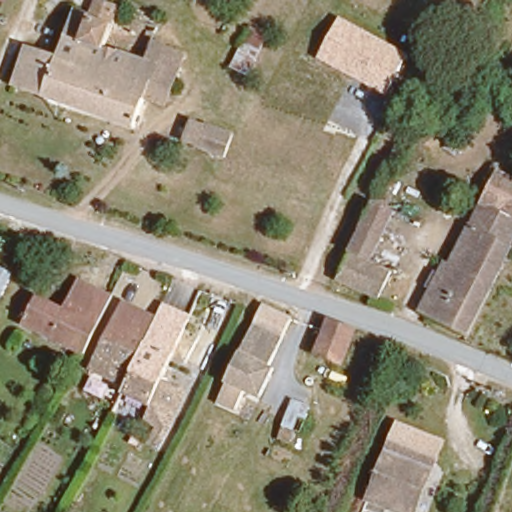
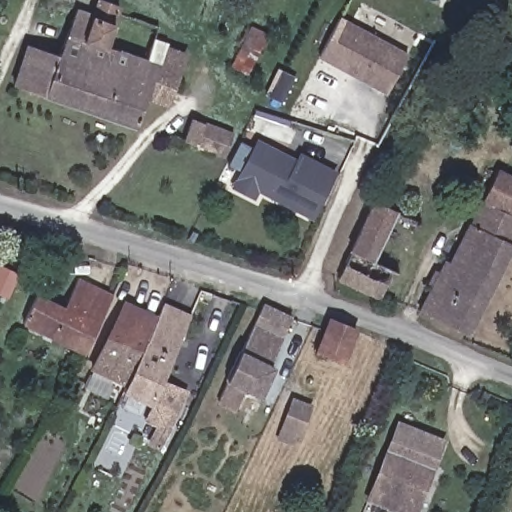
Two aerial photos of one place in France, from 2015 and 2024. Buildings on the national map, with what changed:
unchanged [(79,30),(68,26),(76,2),(91,9),(95,0),(112,0),(121,4),(115,19),(105,41),(143,56),(159,62),(147,92),(133,122),(73,100),(92,35),(79,30)]
unchanged [(79,0),(92,0),(91,4),(79,0)]
unchanged [(385,92),(319,57),(341,17),(407,53),(385,92)]
unchanged [(15,80),(28,41),(58,51),(65,30),(68,26),(79,30),(92,35),(73,100),(72,100),(15,80)]
unchanged [(247,74),(231,66),(250,26),(266,34),(247,74)]
unchanged [(159,62),(143,56),(150,40),(183,54),(165,100),(147,92),(159,62)]
unchanged [(183,140),(191,117),(233,133),(225,155),(183,140)]
new [(337,173),(312,220),(257,193),(254,200),(231,187),(256,138),(296,159),(300,152),(337,173)]
unchanged [(427,287),(422,285),(428,272),(434,275),(440,263),(445,265),(454,245),(447,241),(458,221),(465,224),(494,168),(512,177),(512,232),(505,244),(507,247),(461,335),(415,311),(427,287)]
unchanged [(373,201),(396,211),(373,262),(351,251),(349,250),(373,201)]
unchanged [(351,251),(373,262),(392,271),(379,297),(338,280),(351,251)]
unchanged [(0,301),(0,271),(1,267),(12,272),(0,301)]
unchanged [(86,351),(24,321),(38,295),(63,308),(78,280),(111,296),(86,351)]
unchanged [(259,315),(264,305),(291,318),(286,327),(270,362),(273,365),(259,395),(227,380),(240,350),(259,315)]
unchanged [(93,369),(122,306),(155,320),(126,384),(93,369)]
unchanged [(161,425),(144,416),(150,403),(122,390),(126,384),(155,320),(160,306),(188,318),(163,376),(186,387),(183,392),(175,410),(167,427),(159,446),(152,443),(161,425)]
unchanged [(356,328),(343,365),(316,353),(329,318),(356,328)]
unchanged [(296,391),(314,398),(300,430),(283,423),(296,391)]
unchanged [(415,512),(392,512),(366,502),(387,448),(432,466),(425,485),(418,503),(415,512)]

